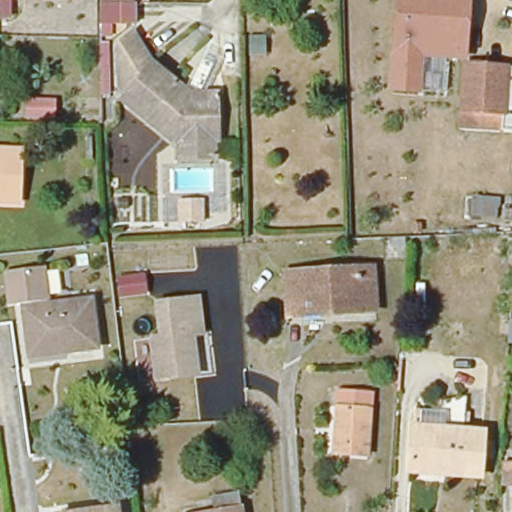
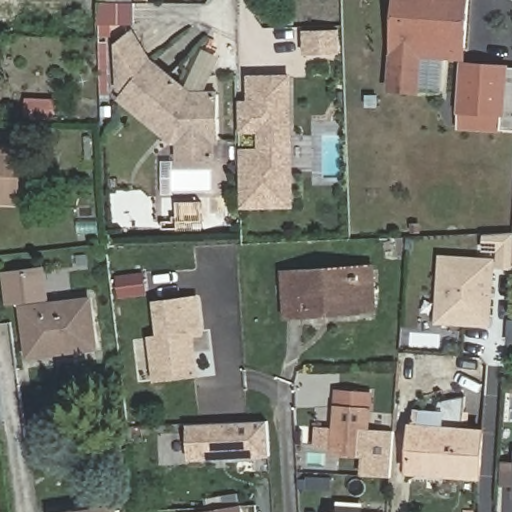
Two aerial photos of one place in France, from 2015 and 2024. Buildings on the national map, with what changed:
unchanged [(114,25),(99,25),(99,3),(99,0),(132,0),(132,4),(134,4),(134,24),(114,25)]
new [(423,59),(421,95),(388,92),(395,0),(426,0),(423,40),(446,41),(465,43),(465,62),(423,59)]
unchanged [(468,0),(465,43),(446,41),(423,40),(426,0),(468,0)]
unchanged [(10,22),(0,22),(0,1),(10,1),(10,22)]
new [(341,54),(303,55),(303,31),(340,30),(341,54)]
unchanged [(181,162),(181,142),(173,141),(121,102),(125,96),(120,92),(117,57),(125,57),(116,45),(131,36),(151,64),(190,95),(220,96),(221,142),(217,142),(217,162),(181,162)]
unchanged [(499,133),(458,131),(462,68),(503,71),(499,133)]
new [(239,102),(247,102),(247,76),(292,74),(295,208),(241,209),(239,102)]
new [(25,98),(53,98),(53,117),(25,117),(25,98)]
unchanged [(21,206),(0,206),(0,152),(22,152),(21,206)]
unchanged [(177,224),(177,197),(205,197),(205,224),(177,224)]
new [(496,270),(498,252),(483,252),(484,234),(512,232),(512,270),(496,270)]
new [(491,327),(436,324),(440,255),(495,258),(491,327)]
unchanged [(30,351),(25,310),(17,304),(16,304),(11,275),(47,270),(52,306),(92,300),(98,347),(64,352),(31,357),(30,351)]
unchanged [(300,318),(297,275),(351,271),(366,271),(369,314),(354,315),(333,316),(316,317),(300,318)]
unchanged [(150,295),(118,298),(116,275),(147,272),(150,295)]
unchanged [(153,383),(148,335),(157,334),(153,301),(201,295),(206,337),(195,337),(200,377),(153,383)]
unchanged [(512,305),(512,322),(509,322),(510,313),(510,305),(512,305)]
unchanged [(336,393),(370,395),(365,456),(333,453),(336,393)]
new [(268,422),(270,458),(188,461),(187,425),(268,422)]
unchanged [(478,480),(409,475),(412,430),(481,436),(478,480)]
unchanged [(242,512),(216,512),(214,497),(239,495),(242,512)]
unchanged [(115,512),(90,512),(114,508),(115,512)]

